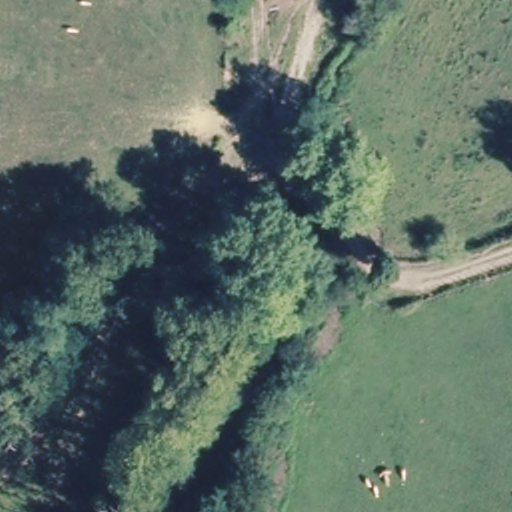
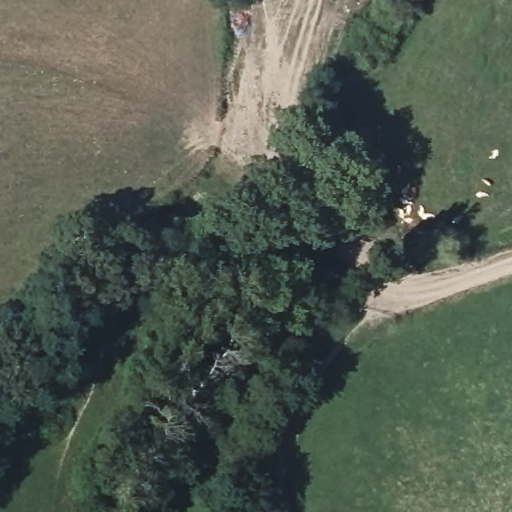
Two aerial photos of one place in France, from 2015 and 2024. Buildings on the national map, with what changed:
unchanged [(263,10),(264,0),(295,0),(294,1),(263,10)]

